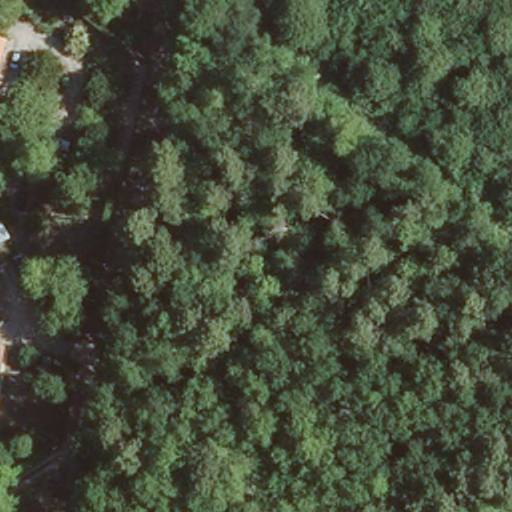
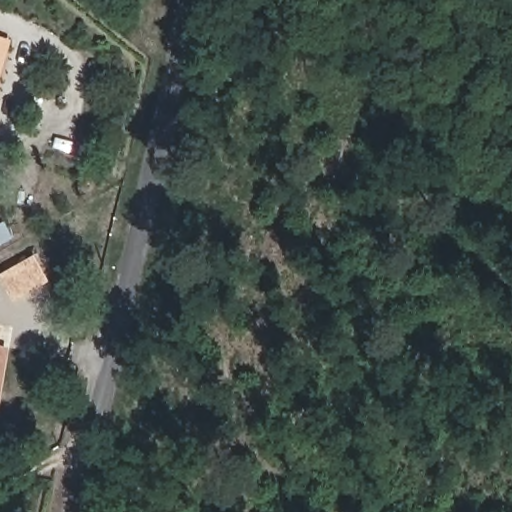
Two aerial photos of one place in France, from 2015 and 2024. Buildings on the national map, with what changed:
new [(10,303),(0,284),(0,273),(32,255),(47,283),(10,303)]
unchanged [(4,346),(0,368),(0,346),(4,346)]

